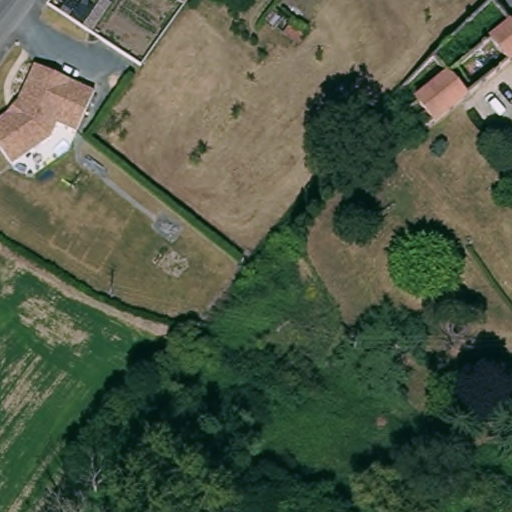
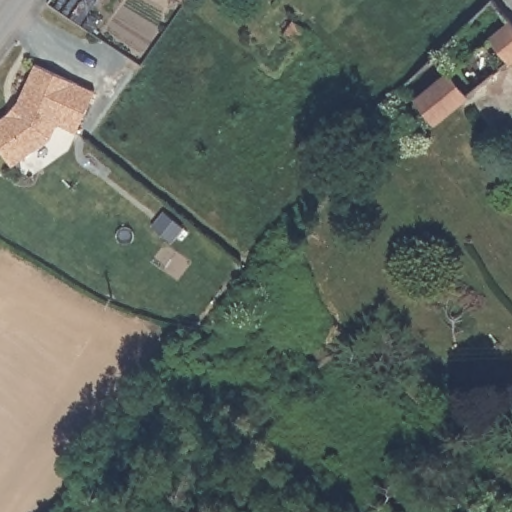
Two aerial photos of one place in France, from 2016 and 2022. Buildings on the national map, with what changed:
unchanged [(486,0),(510,0),(512,2),(512,53),(438,129),(416,108),(418,105),(400,89),(460,27),(486,0)]
unchanged [(10,112),(16,102),(34,63),(97,90),(81,134),(58,125),(51,138),(13,166),(0,148),(0,118),(10,112)]
unchanged [(292,169),(314,138),(337,155),(314,185),(292,169)]

